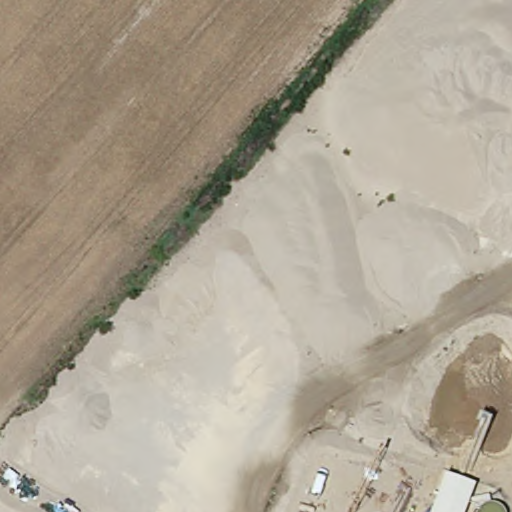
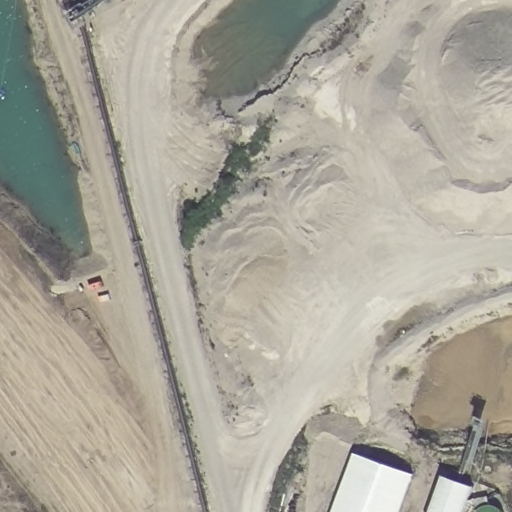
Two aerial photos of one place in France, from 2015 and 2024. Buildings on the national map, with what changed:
new [(416,473),(402,512),(335,512),(357,452),(416,473)]
unchanged [(475,487),(467,512),(431,512),(443,476),(475,487)]

